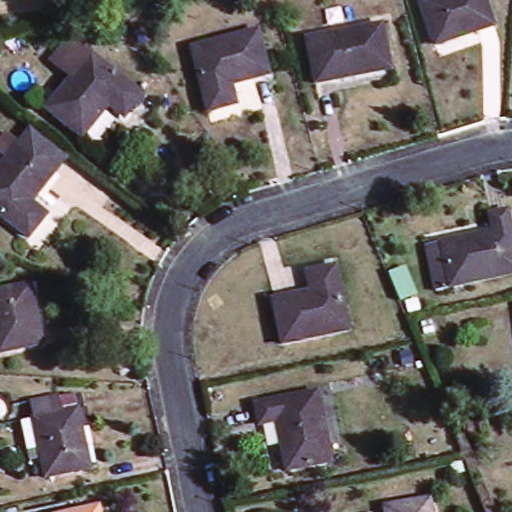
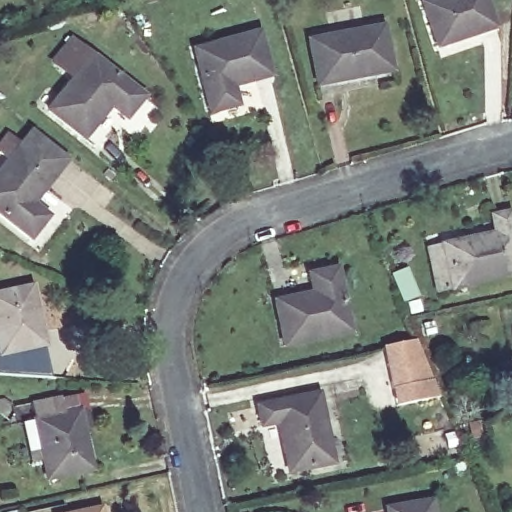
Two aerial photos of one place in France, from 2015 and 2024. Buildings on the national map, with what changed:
unchanged [(437,47),(422,4),(435,0),(485,0),(494,28),(437,47)]
unchanged [(315,77),(307,40),(382,26),(390,71),(344,80),(317,85),(315,77)]
unchanged [(269,77),(232,86),(237,107),(208,113),(192,49),(257,32),(269,77)]
unchanged [(143,97),(125,120),(108,108),(82,139),(45,109),(70,79),(50,62),(70,38),(143,97)]
unchanged [(0,220),(0,168),(4,162),(0,159),(0,138),(15,149),(29,131),(64,159),(28,205),(44,217),(27,239),(0,220)]
unchanged [(425,247),(440,244),(492,233),(488,215),(509,211),(512,230),(512,276),(450,288),(435,291),(425,247)]
unchanged [(349,333),(282,346),(272,301),(311,293),(307,274),(335,268),(349,333)]
unchanged [(0,293),(25,288),(31,287),(36,311),(44,346),(0,354),(0,293)]
new [(395,407),(392,389),(384,347),(415,341),(432,382),(439,398),(395,407)]
unchanged [(332,465),(288,474),(277,424),(260,427),(255,405),(317,394),(332,465)]
unchanged [(82,473),(47,480),(35,419),(32,403),(61,397),(64,413),(78,411),(85,444),(90,471),(82,473)]
unchanged [(432,512),(385,512),(384,508),(430,501),(432,512)]
unchanged [(99,508),(100,512),(80,512),(99,508)]

